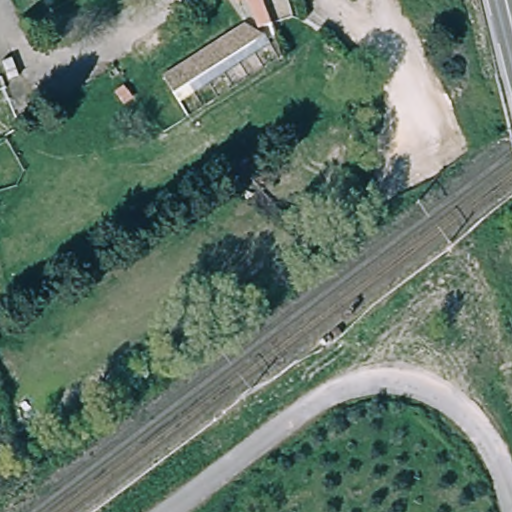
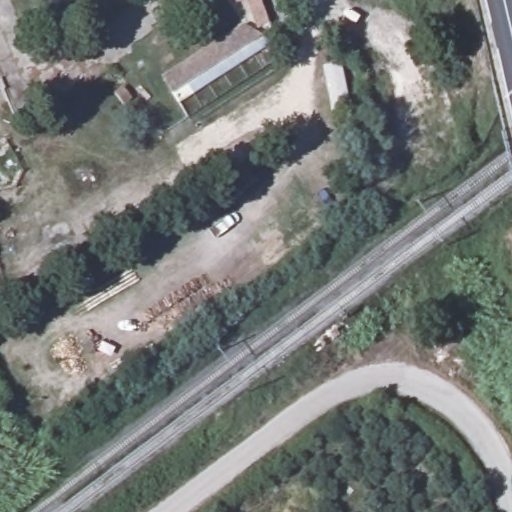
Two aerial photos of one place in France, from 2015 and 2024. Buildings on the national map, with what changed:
unchanged [(248,0),(263,0),(272,27),(259,31),(248,0)]
unchanged [(249,28),(257,38),(261,35),(271,48),(178,103),(165,78),(249,28)]

